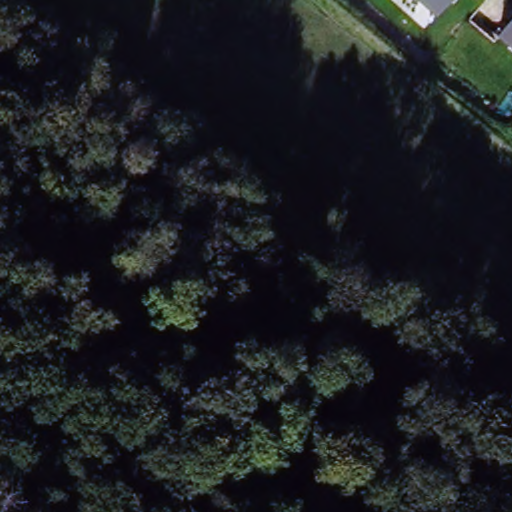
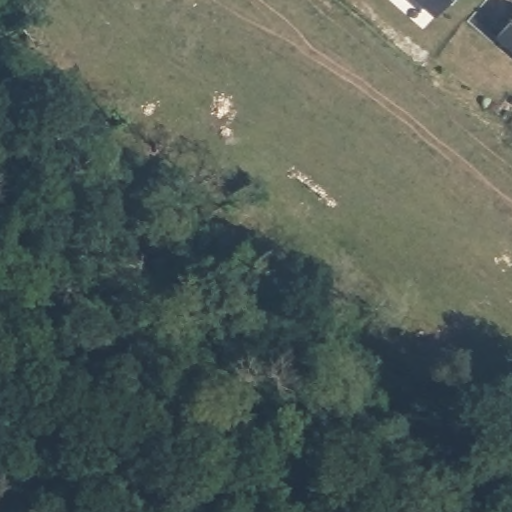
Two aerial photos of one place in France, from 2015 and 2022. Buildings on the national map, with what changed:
unchanged [(415,0),(453,0),(435,19),(415,0)]
unchanged [(497,40),(512,22),(512,53),(497,40)]

